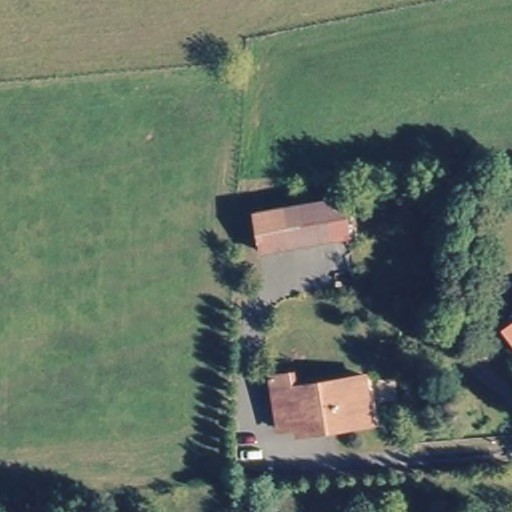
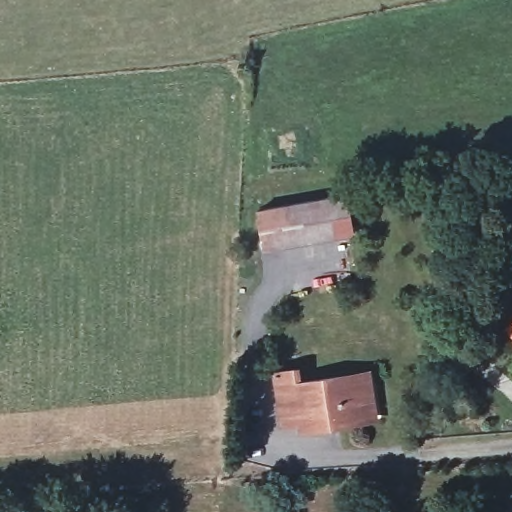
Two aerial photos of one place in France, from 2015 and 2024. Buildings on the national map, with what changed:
unchanged [(256,211),(348,200),(353,239),(260,252),(256,211)]
unchanged [(507,326),(512,323),(512,334),(507,326)]
unchanged [(366,418),(337,424),(336,417),(318,420),(321,427),(299,432),(297,425),(279,427),(265,368),(289,366),(292,381),(373,366),(379,391),(383,415),(366,418)]

